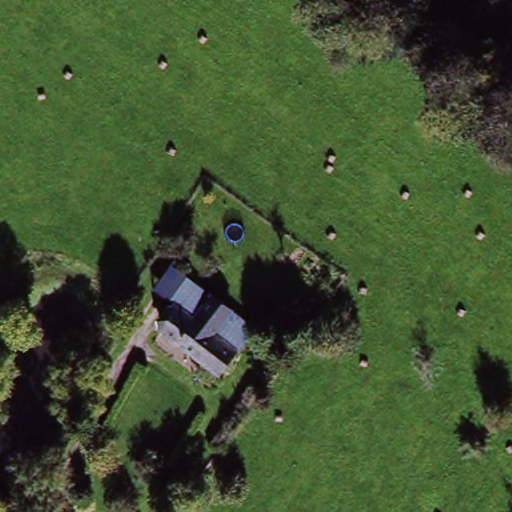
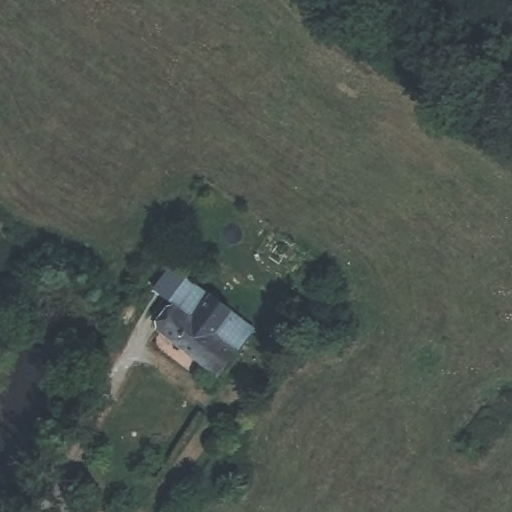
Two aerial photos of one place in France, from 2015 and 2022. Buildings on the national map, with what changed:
unchanged [(150,331),(170,307),(148,294),(174,267),(258,331),(220,382),(150,331)]

